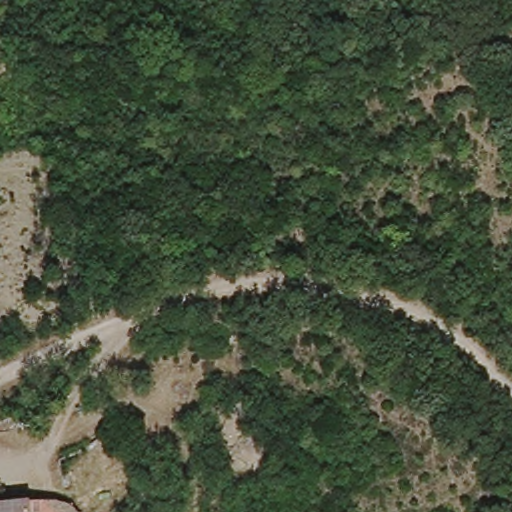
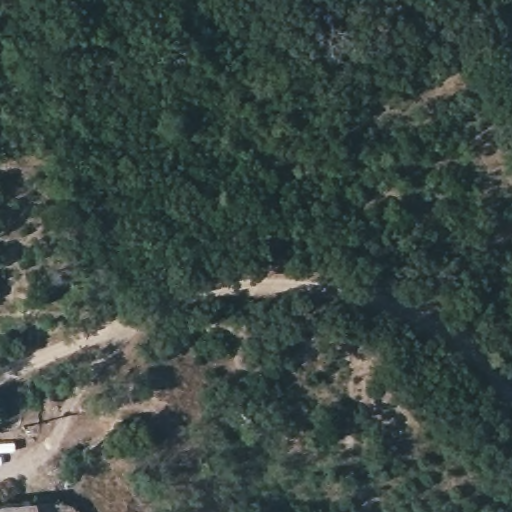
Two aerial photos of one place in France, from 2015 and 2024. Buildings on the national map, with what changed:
unchanged [(65,482),(75,512),(0,512),(0,487),(65,482)]

